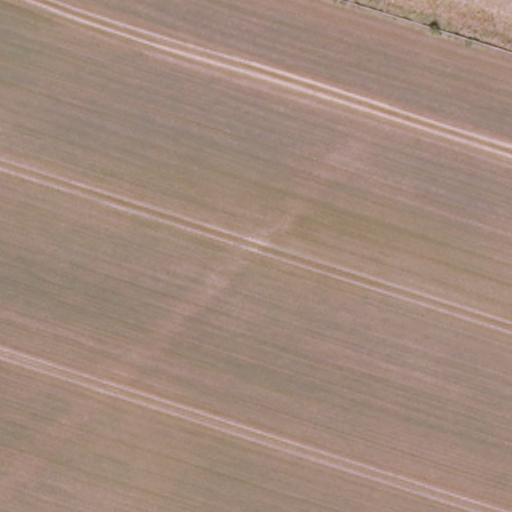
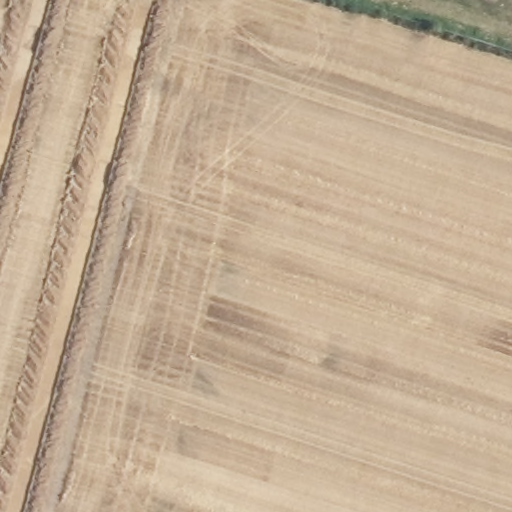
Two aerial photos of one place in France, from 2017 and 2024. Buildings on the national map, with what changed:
[]

